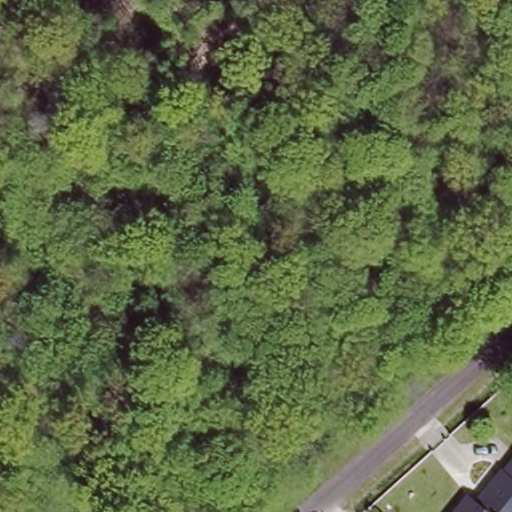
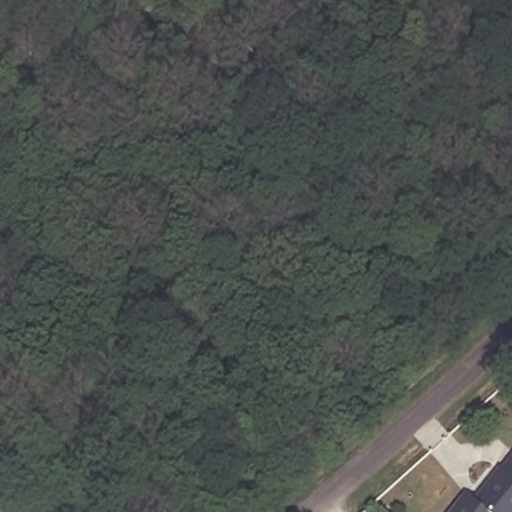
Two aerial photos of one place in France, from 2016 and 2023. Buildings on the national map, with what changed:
unchanged [(512,451),(512,512),(446,512),(476,476),(484,484),(512,451)]

